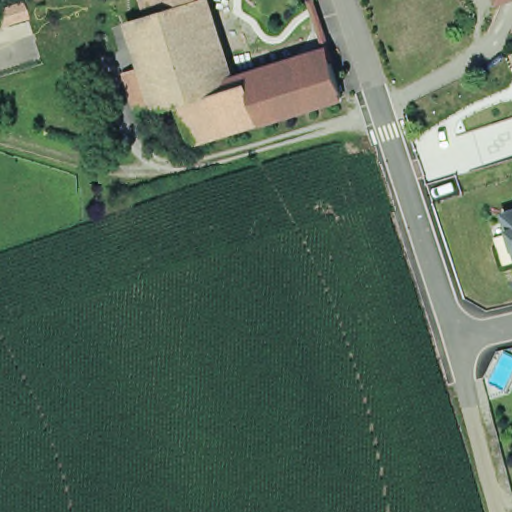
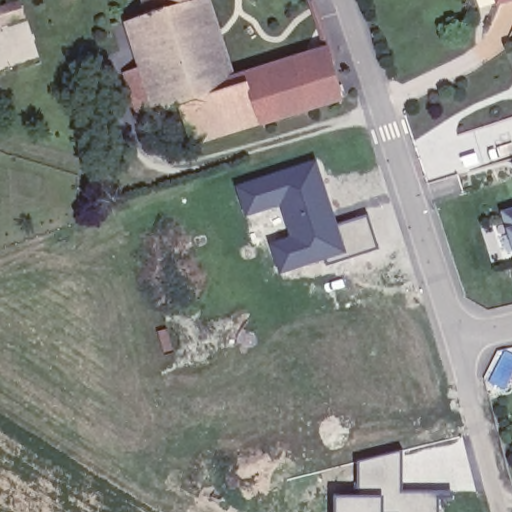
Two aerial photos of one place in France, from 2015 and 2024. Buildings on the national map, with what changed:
unchanged [(193,0),(195,5),(150,19),(144,0),(193,0)]
unchanged [(499,0),(504,0),(500,1),(499,0)]
unchanged [(195,5),(208,46),(224,96),(181,110),(170,113),(155,67),(141,22),(150,19),(195,5)]
unchanged [(194,148),(181,110),(224,96),(230,95),(245,90),(246,94),(250,93),(249,88),(329,63),(342,102),(260,126),(242,132),(194,148)]
unchanged [(170,113),(140,122),(124,76),(155,67),(170,113)]
new [(315,167),(344,260),(322,266),(317,258),(280,267),(274,248),(293,242),(284,202),(247,211),(241,189),(315,167)]
unchanged [(512,211),(512,236),(505,213),(512,211)]
new [(367,217),(379,251),(344,260),(334,227),(367,217)]
new [(400,451),(400,494),(435,494),(437,512),(333,512),(332,500),(355,500),(355,461),(400,451)]

